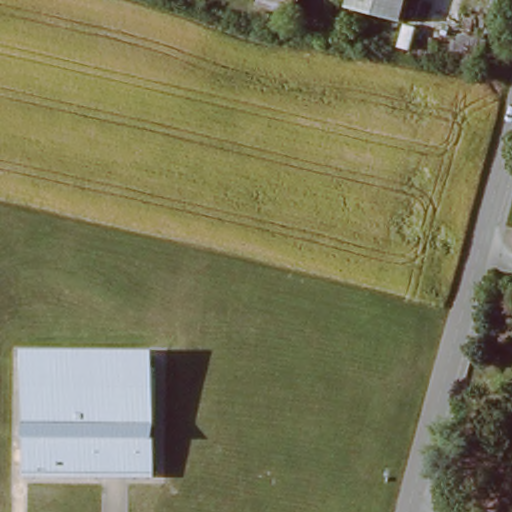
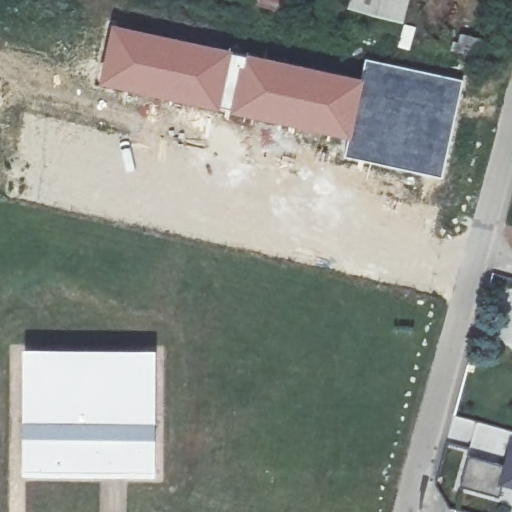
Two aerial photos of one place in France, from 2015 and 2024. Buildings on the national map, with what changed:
unchanged [(301,0),(297,15),(258,5),(260,0),(301,0)]
unchanged [(343,5),(345,0),(407,0),(402,20),(343,5)]
new [(111,23),(232,50),(220,111),(99,83),(111,23)]
new [(457,31),(491,40),(486,60),(451,51),(457,31)]
new [(232,50),(360,75),(360,78),(362,79),(350,136),(348,136),(347,139),(220,111),(232,50)]
new [(347,139),(348,136),(350,136),(362,79),(360,78),(360,75),(364,56),(463,77),(443,179),(343,156),(347,139)]
unchanged [(19,480),(22,343),(157,346),(159,478),(19,480)]
new [(508,480),(503,497),(465,486),(472,455),(511,465),(512,462),(512,480),(508,480)]

